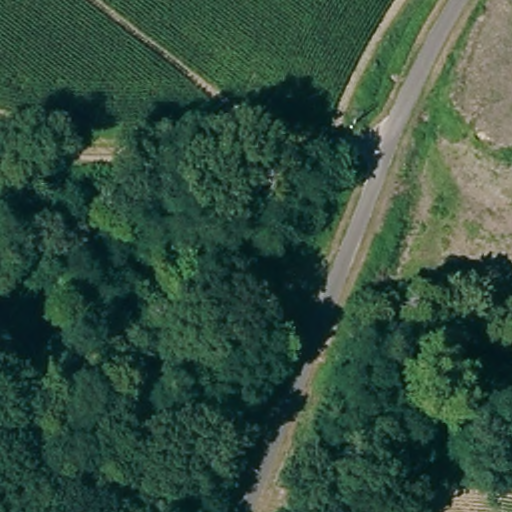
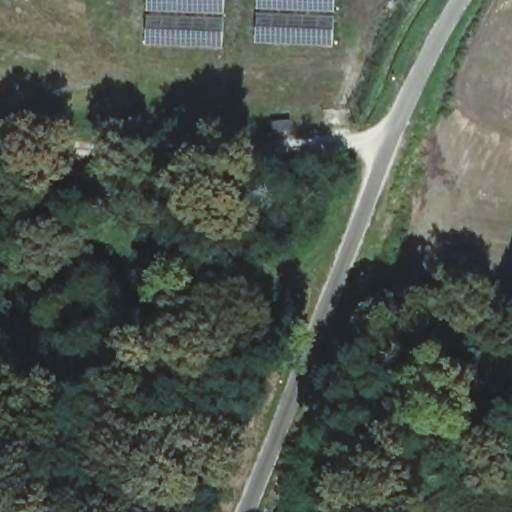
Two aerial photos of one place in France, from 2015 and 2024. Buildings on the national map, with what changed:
new [(148,43),(149,0),(226,0),(224,47),(148,43)]
new [(256,41),(257,0),(335,0),(333,45),(256,41)]

